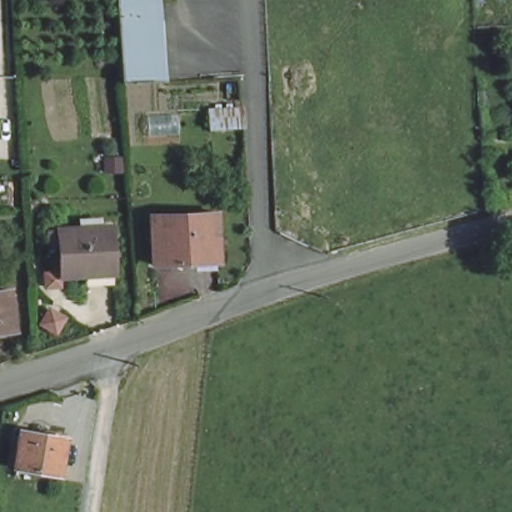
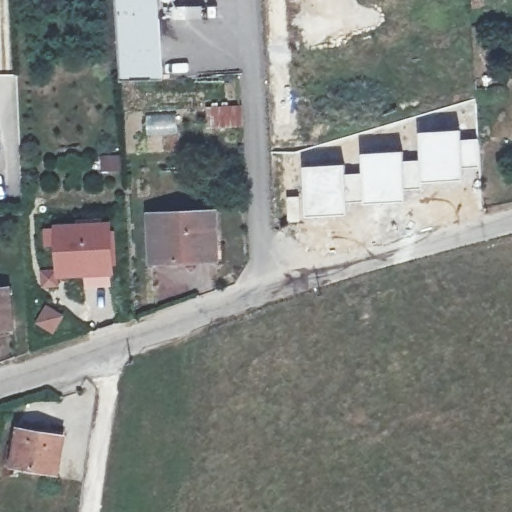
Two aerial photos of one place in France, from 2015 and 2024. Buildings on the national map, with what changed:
unchanged [(113,0),(160,0),(163,79),(118,82),(113,0)]
unchanged [(233,127),(200,129),(200,107),(232,106),(233,127)]
new [(460,129),(460,140),(477,137),(480,167),(462,169),(463,180),(422,184),(419,159),(417,132),(460,129)]
new [(360,172),(359,153),(402,150),(403,161),(419,159),(422,184),(422,189),(405,190),(405,201),(347,204),(345,173),(360,172)]
new [(303,195),(301,166),(343,164),(345,173),(347,204),(347,215),(302,218),(302,221),(287,222),(285,197),(303,195)]
unchanged [(147,263),(145,215),(208,210),(210,257),(147,263)]
unchanged [(53,268),(50,228),(106,225),(108,273),(81,275),(80,267),(53,268)]
unchanged [(0,289),(9,288),(12,324),(0,326),(0,289)]
unchanged [(59,436),(53,471),(7,463),(12,430),(59,436)]

